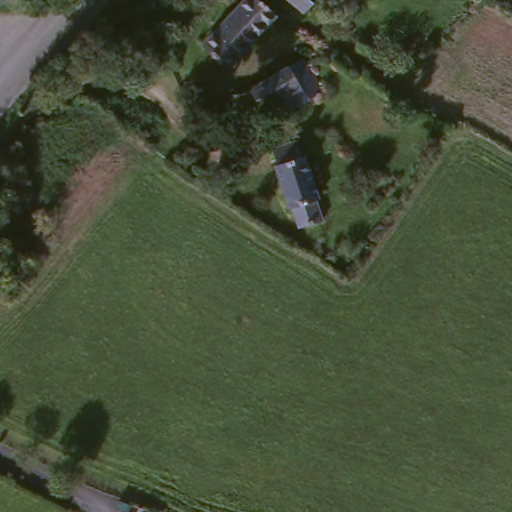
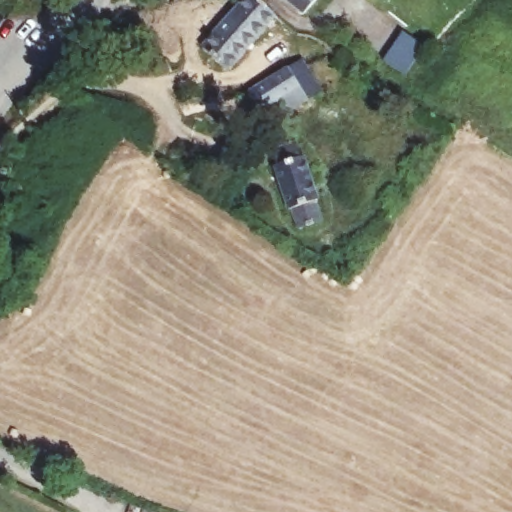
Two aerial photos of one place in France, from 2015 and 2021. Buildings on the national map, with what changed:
unchanged [(261,0),(271,0),(287,17),(231,74),(212,50),(261,0)]
new [(402,30),(426,46),(405,75),(381,60),(402,30)]
unchanged [(260,110),(249,91),(275,80),(284,77),(320,62),(322,67),(332,94),(311,103),(305,92),(268,107),(260,110)]
unchanged [(279,153),(305,148),(325,205),(319,205),(324,225),(299,228),(292,205),(279,153)]

